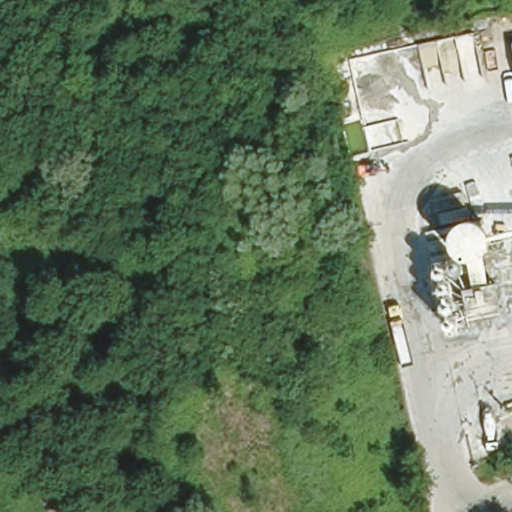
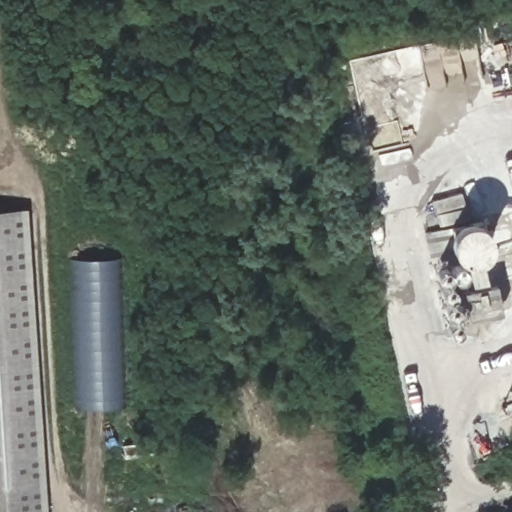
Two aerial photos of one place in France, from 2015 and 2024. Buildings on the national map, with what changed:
demolished [(512,199),(510,183),(512,182),(512,199)]
new [(0,512),(0,209),(25,208),(46,512),(0,512)]
unchanged [(456,219),(467,216),(477,219),(487,238),(485,249),(476,255),(466,257),(455,255),(446,245),(446,235),(448,227),(456,219)]
new [(71,258),(117,257),(122,406),(76,407),(71,258)]

